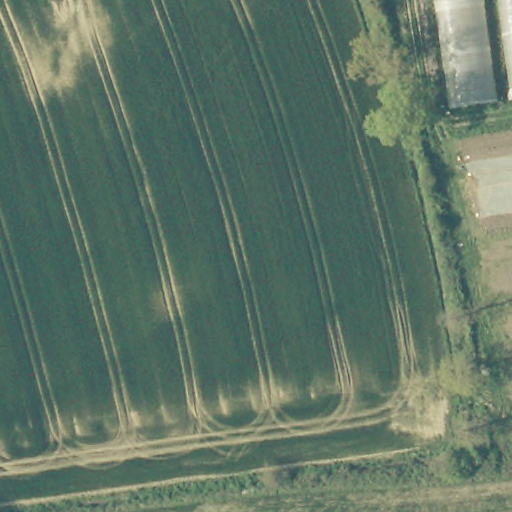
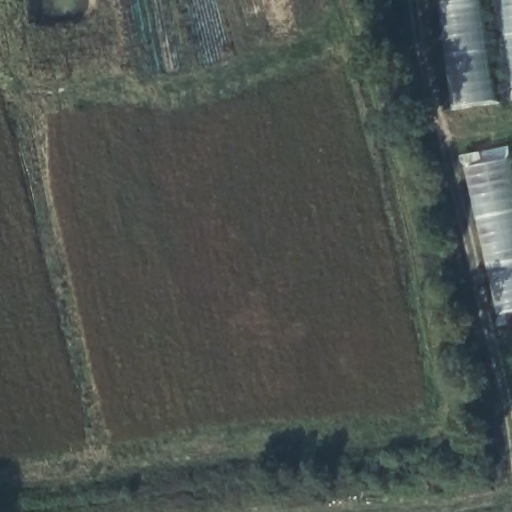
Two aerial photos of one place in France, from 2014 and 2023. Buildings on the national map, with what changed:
unchanged [(451,109),(434,0),(483,0),(498,101),(451,109)]
unchanged [(497,0),(512,0),(512,100),(510,100),(497,0)]
new [(512,323),(501,324),(464,156),(508,145),(512,164),(512,323)]

